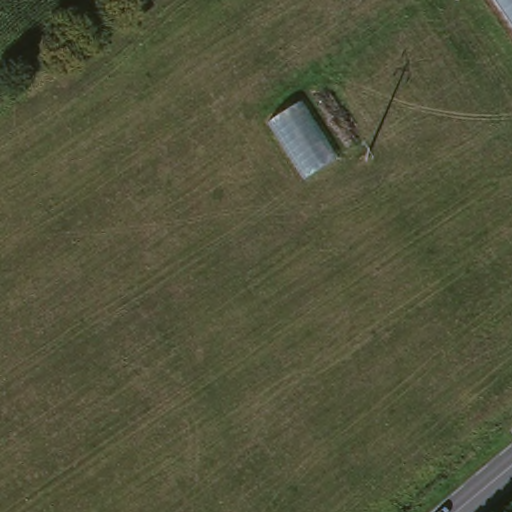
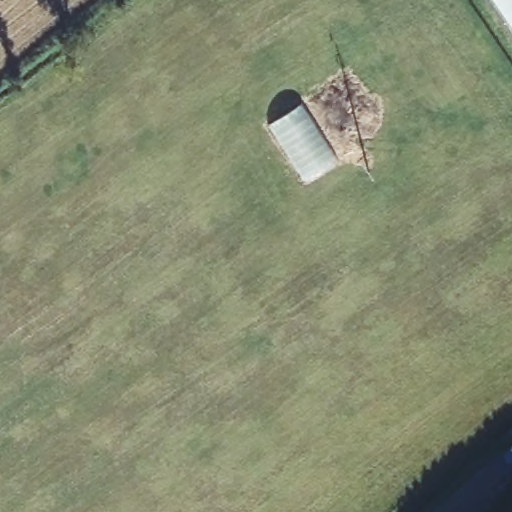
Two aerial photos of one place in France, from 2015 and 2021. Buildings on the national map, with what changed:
unchanged [(512,17),(500,0),(512,0),(512,17)]

